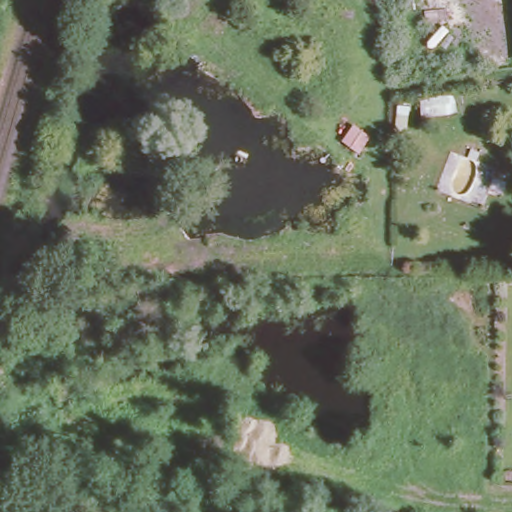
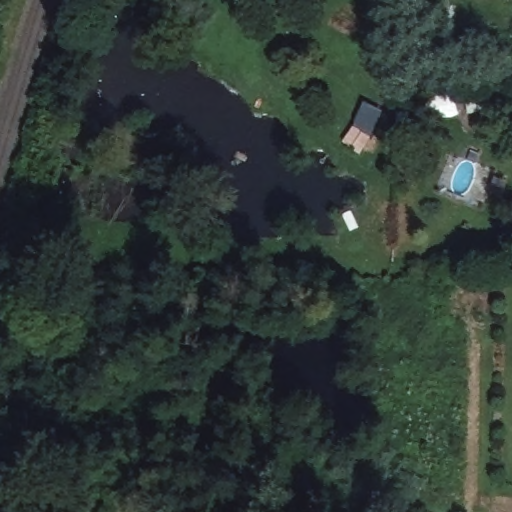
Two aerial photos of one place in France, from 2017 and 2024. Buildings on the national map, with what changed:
unchanged [(342,144),(355,126),(373,139),(362,156),(342,144)]

